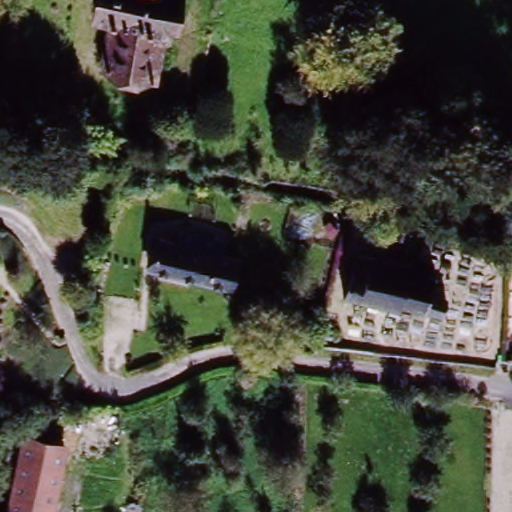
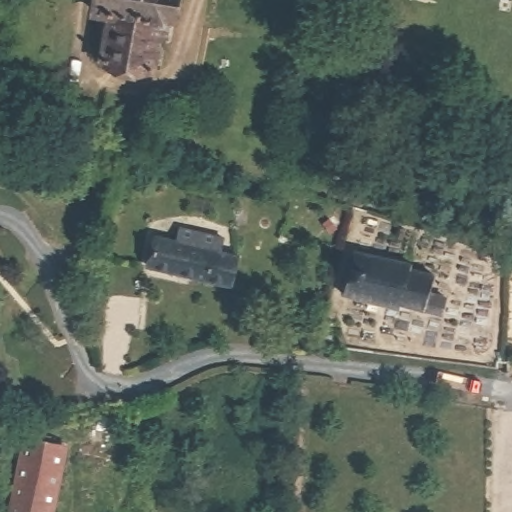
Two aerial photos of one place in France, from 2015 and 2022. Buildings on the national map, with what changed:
unchanged [(161,20),(158,28),(153,27),(146,73),(98,66),(101,44),(104,20),(88,17),(91,0),(171,0),(168,20),(161,20)]
unchanged [(198,126),(204,92),(224,96),(218,130),(198,126)]
unchanged [(281,145),(288,113),(304,116),(298,148),(281,145)]
unchanged [(154,211),(154,197),(163,197),(167,197),(168,210),(162,211),(154,211)]
unchanged [(150,270),(156,243),(176,246),(178,233),(221,241),(221,242),(218,255),(234,259),(228,288),(150,270)]
unchanged [(448,308),(432,305),(406,299),(404,305),(349,294),(359,252),(414,262),(413,270),(438,275),(435,288),(451,291),(448,308)]
unchanged [(25,446),(62,454),(49,512),(11,512),(25,446)]

